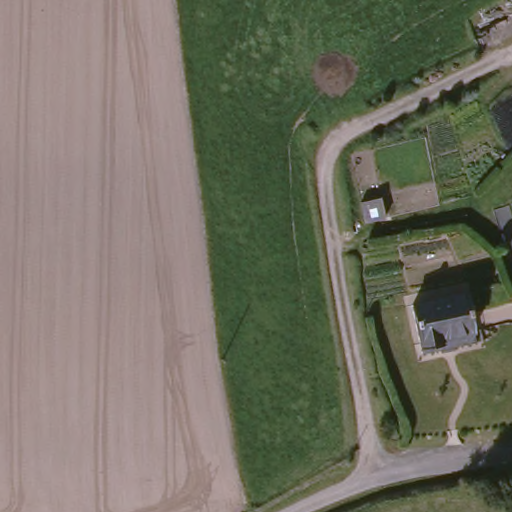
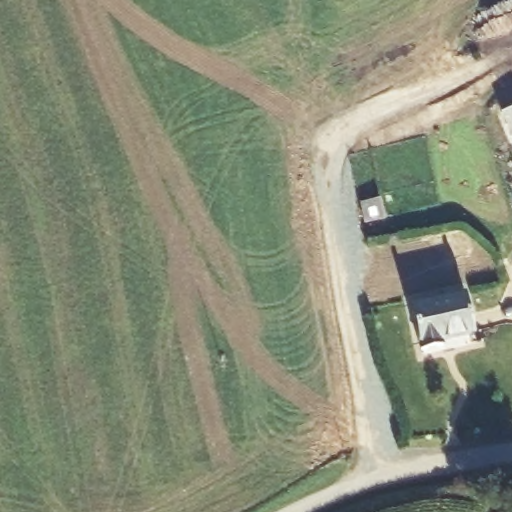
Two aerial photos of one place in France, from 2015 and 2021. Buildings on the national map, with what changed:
unchanged [(472,293),(482,332),(451,340),(454,352),(427,358),(423,346),(414,308),(472,293)]

